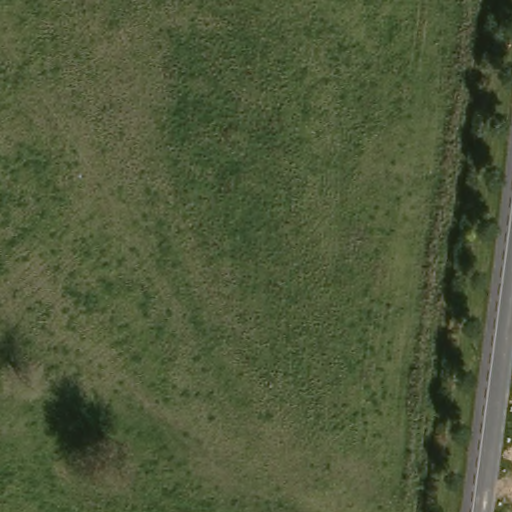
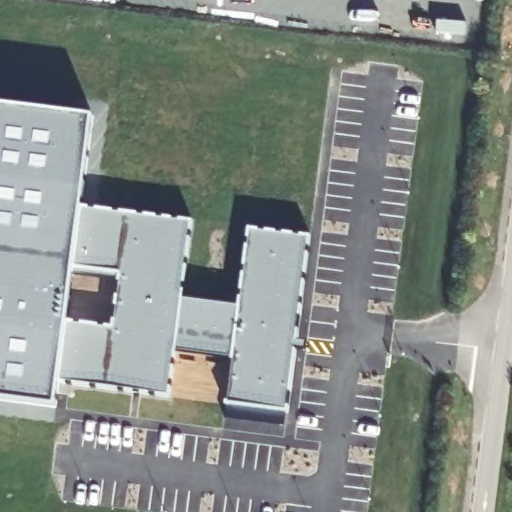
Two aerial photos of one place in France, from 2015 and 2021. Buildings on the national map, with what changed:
new [(80,206),(197,222),(187,298),(182,335),(174,398),(58,383),(55,407),(0,401),(0,105),(92,116),(80,206)]
new [(237,342),(242,306),(252,228),(310,236),(287,412),(230,405),(237,342)]
new [(187,298),(242,306),(237,342),(182,335),(187,298)]

